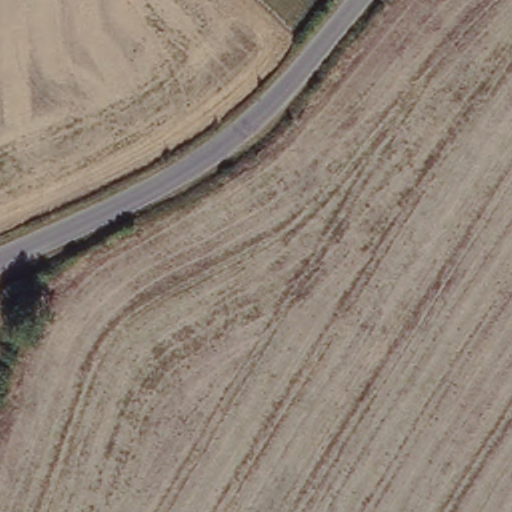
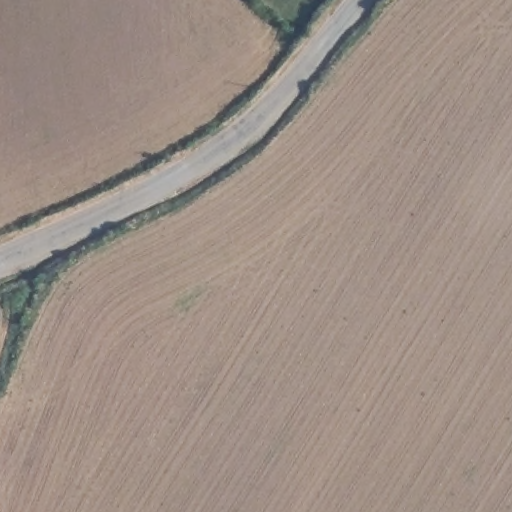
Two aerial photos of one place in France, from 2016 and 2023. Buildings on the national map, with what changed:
[]

